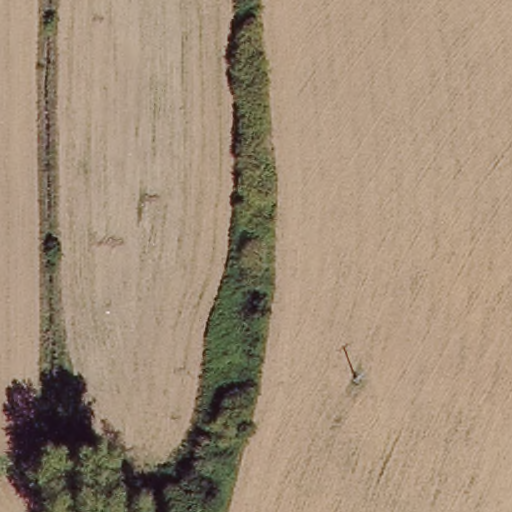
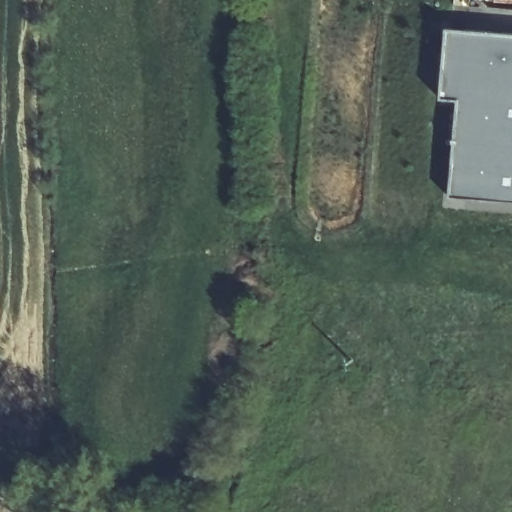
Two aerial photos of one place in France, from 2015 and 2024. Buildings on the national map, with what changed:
new [(451,195),(460,98),(442,96),(447,27),(512,33),(512,200),(451,195)]

